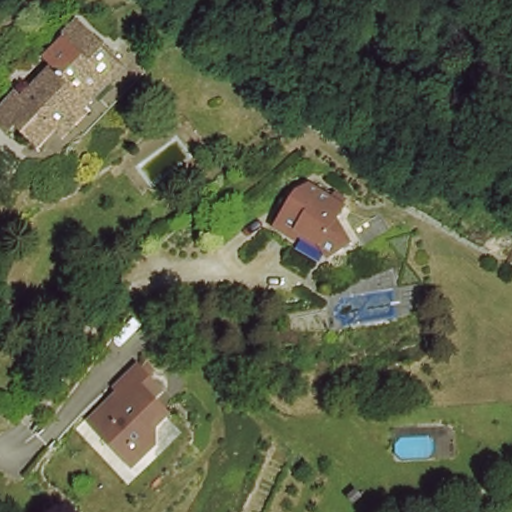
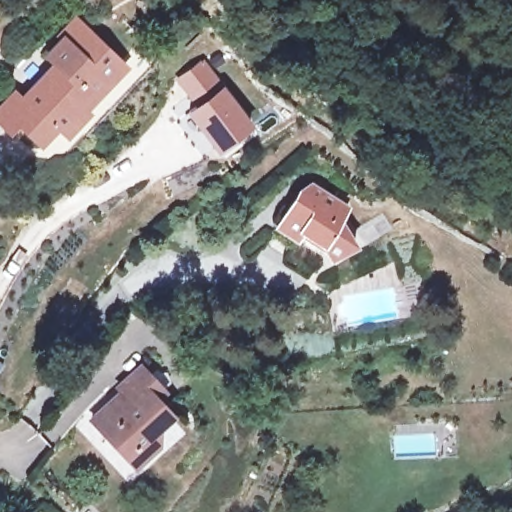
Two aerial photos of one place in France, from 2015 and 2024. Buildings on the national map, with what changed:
unchanged [(36,127),(29,118),(17,128),(4,114),(30,89),(37,95),(69,66),(60,56),(81,36),(77,31),(88,19),(130,63),(86,103),(93,112),(71,132),(68,128),(51,143),(36,127)]
new [(204,59),(221,84),(251,125),(214,152),(185,112),(193,106),(173,80),(204,59)]
unchanged [(343,211),(344,222),(358,246),(335,261),(326,247),(304,237),(300,246),(280,236),(291,214),(299,208),(295,203),(296,200),(306,193),(343,211)]
unchanged [(161,391),(153,399),(169,415),(156,428),(156,443),(141,443),(133,449),(131,447),(122,455),(90,422),(110,402),(117,402),(124,396),(116,389),(138,367),(161,391)]

